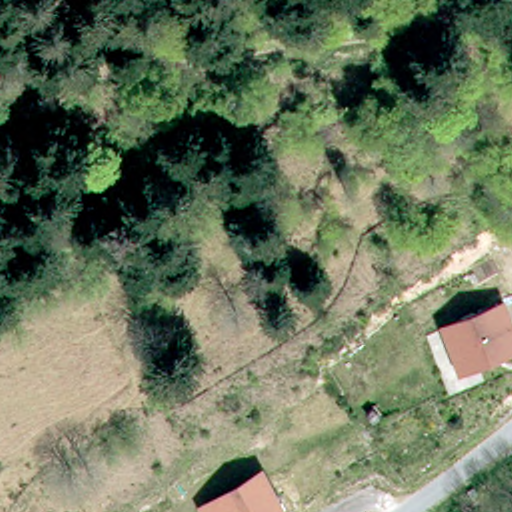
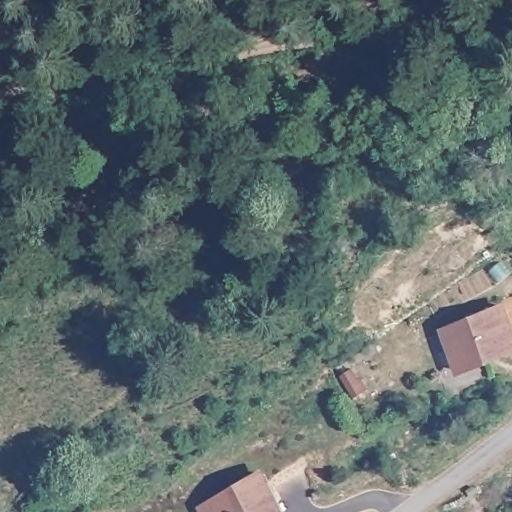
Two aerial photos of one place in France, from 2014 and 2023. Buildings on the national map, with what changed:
unchanged [(507,302),(512,317),(512,345),(463,366),(448,327),(507,302)]
unchanged [(290,512),(202,512),(200,508),(264,469),(290,512)]

